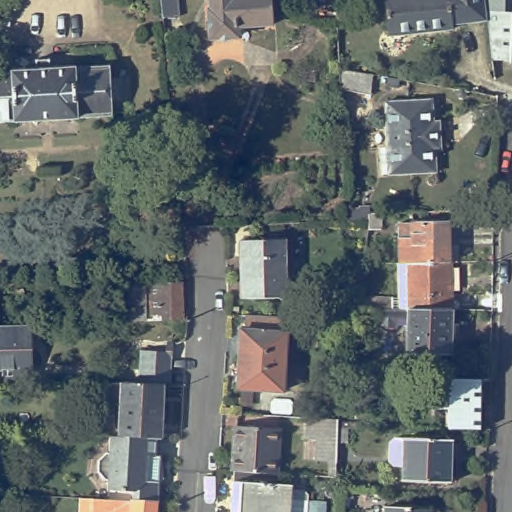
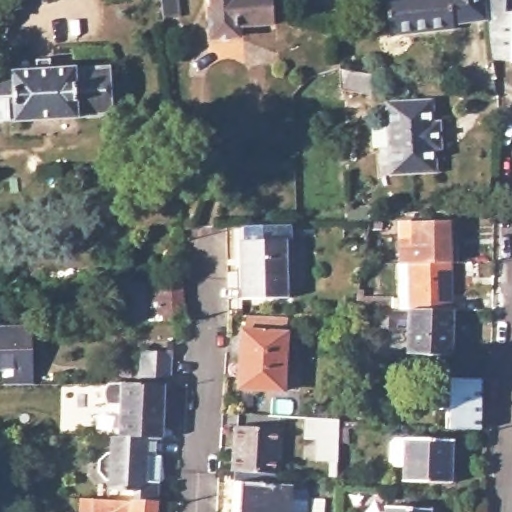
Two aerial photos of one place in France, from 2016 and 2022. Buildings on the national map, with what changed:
unchanged [(272,20),(238,22),(239,32),(211,35),(209,7),(213,6),(213,0),(271,0),(272,20)]
unchanged [(458,24),(459,30),(395,37),(392,0),(489,0),(490,11),(491,20),(458,24)]
unchanged [(494,60),(491,20),(490,11),(489,0),(510,0),(510,12),(512,12),(512,61),(494,60)]
unchanged [(39,55),(54,54),(54,65),(114,61),(117,112),(0,119),(0,68),(40,65),(39,55)]
unchanged [(340,93),(339,72),(374,77),(371,97),(340,93)]
unchanged [(386,104),(433,102),(433,122),(439,122),(441,150),(435,151),(436,174),(389,176),(386,104)]
unchanged [(367,223),(347,223),(346,212),(358,212),(358,215),(368,215),(397,214),(397,231),(367,232),(367,231),(367,223)]
unchanged [(403,237),(415,236),(415,220),(455,220),(455,259),(411,260),(404,260),(403,237)]
unchanged [(240,242),(282,240),(284,269),(285,268),(287,297),(242,299),(240,242)]
unchanged [(411,306),(411,260),(455,259),(455,306),(411,306)]
unchanged [(137,287),(146,287),(146,285),(183,285),(184,320),(138,321),(137,287)]
unchanged [(6,368),(0,369),(0,295),(2,326),(32,325),(33,368),(33,385),(5,385),(6,368)]
unchanged [(411,306),(455,306),(455,321),(461,321),(461,338),(455,338),(455,353),(410,352),(410,323),(399,323),(399,327),(381,327),(381,323),(378,323),(378,320),(376,318),(376,313),(378,310),(378,306),(411,306)]
unchanged [(238,379),(241,320),(287,322),(283,381),(238,379)]
unchanged [(160,438),(144,437),(130,437),(128,437),(126,437),(126,405),(114,405),(110,396),(110,392),(113,385),(147,385),(148,352),(176,352),(176,385),(169,385),(166,438),(161,438),(160,438)]
unchanged [(443,380),(484,381),(484,382),(482,432),(452,431),(453,411),(440,410),(441,380),(443,380)]
unchanged [(301,461),(306,420),(338,422),(338,425),(338,429),(336,464),(301,461)]
unchanged [(243,472),(246,427),(289,430),(287,475),(243,472)]
unchanged [(156,501),(112,500),(114,480),(110,480),(103,472),(103,461),(112,453),(115,453),(116,436),(126,437),(128,437),(130,437),(144,437),(160,438),(161,438),(160,455),(165,455),(162,502),(156,501)]
unchanged [(405,482),(405,453),(395,453),(396,440),(454,440),(452,484),(405,482)]
unchanged [(302,485),(300,512),(242,512),(245,482),(302,485)]
unchanged [(112,500),(156,501),(162,502),(162,512),(95,512),(95,499),(112,500)]
unchanged [(433,508),(433,512),(389,512),(389,507),(433,508)]

